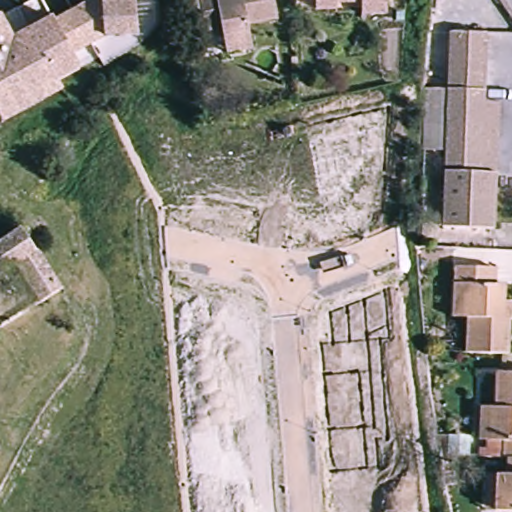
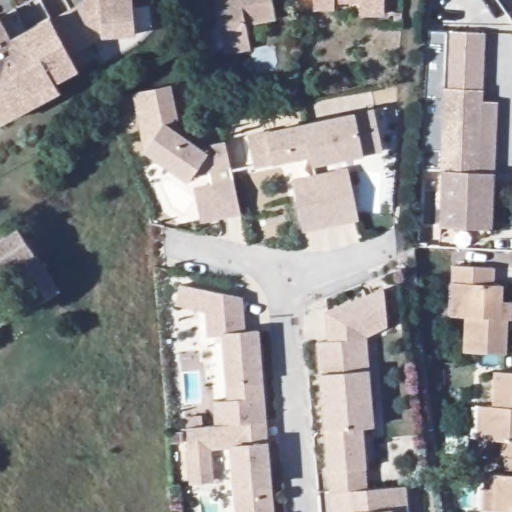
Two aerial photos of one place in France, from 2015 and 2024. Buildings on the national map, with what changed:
unchanged [(105,36),(68,56),(76,71),(56,82),(60,89),(0,122),(0,15),(15,7),(25,31),(87,0),(134,0),(137,33),(105,36)]
new [(278,20),(246,26),(250,51),(228,56),(221,28),(196,35),(189,0),(273,0),(278,20)]
demolished [(249,26),(240,27),(242,51),(218,53),(215,28),(196,30),(194,0),(247,0),(249,26)]
unchanged [(379,23),(356,21),(356,2),(335,0),(334,12),(316,11),(316,0),(380,0),(379,23)]
unchanged [(441,155),(419,154),(418,89),(444,89),(445,32),(485,33),(482,101),(497,103),(492,230),(438,230),(441,155)]
new [(179,132),(200,147),(226,142),(240,214),(219,218),(209,170),(193,172),(186,183),(145,152),(133,96),(170,87),(179,132)]
unchanged [(372,114),(381,154),(311,169),(309,160),(303,129),(372,114)]
new [(303,129),(309,160),(254,171),(248,141),(303,129)]
new [(303,235),(295,200),(292,186),(314,181),(346,174),(356,224),(344,227),(325,231),(303,235)]
new [(218,216),(202,219),(195,187),(211,183),(218,216)]
unchanged [(0,277),(0,245),(10,239),(16,235),(57,296),(34,312),(8,272),(0,277)]
unchanged [(511,319),(505,319),(504,352),(468,350),(470,317),(462,317),(449,317),(450,284),(451,268),(492,270),(492,285),(501,286),(501,303),(512,304),(511,319)]
new [(366,337),(370,370),(374,427),(364,428),(369,489),(406,487),(408,512),(331,512),(316,343),(328,342),(326,312),(384,289),(387,327),(366,337)]
new [(209,454),(212,486),(193,488),(190,455),(188,433),(218,430),(216,407),(230,406),(224,340),(210,341),(208,315),(178,309),(182,292),(211,298),(240,303),(243,337),(258,336),(265,426),(267,447),(273,512),(238,512),(233,452),(209,454)]
unchanged [(470,406),(481,407),(492,407),(493,372),(512,372),(512,459),(494,458),(494,443),(480,442),(469,442),(470,406)]
unchanged [(498,512),(475,511),(463,510),(465,472),(477,472),(493,473),(494,458),(512,459),(512,512),(498,512)]

